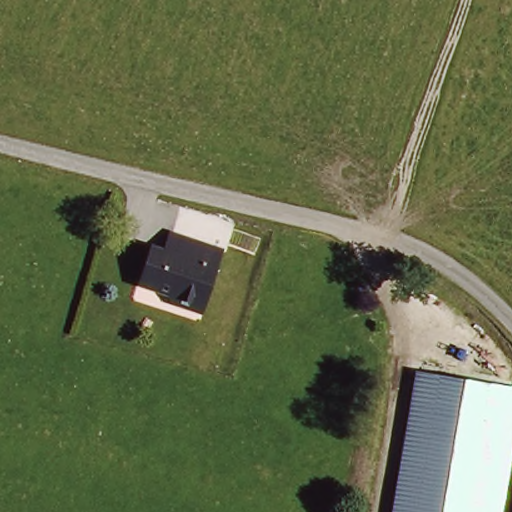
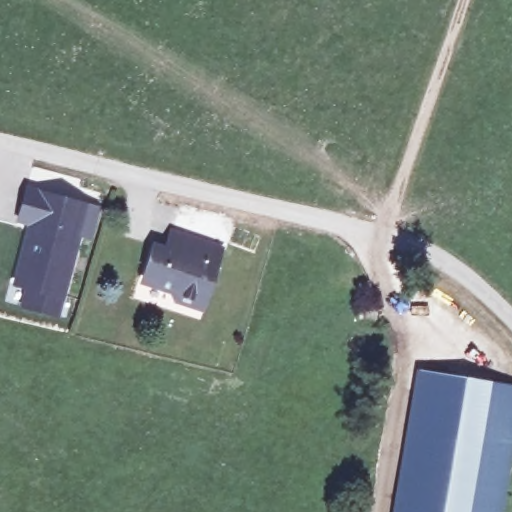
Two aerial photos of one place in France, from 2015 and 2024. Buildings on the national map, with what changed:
new [(19,306),(24,290),(10,285),(26,225),(14,222),(25,182),(101,206),(93,239),(80,236),(57,318),(19,306)]
unchanged [(184,259),(190,242),(238,258),(232,276),(226,275),(213,316),(191,309),(180,296),(151,287),(162,252),(184,259)]
unchanged [(512,388),(512,458),(502,512),(391,512),(415,372),(512,388)]

